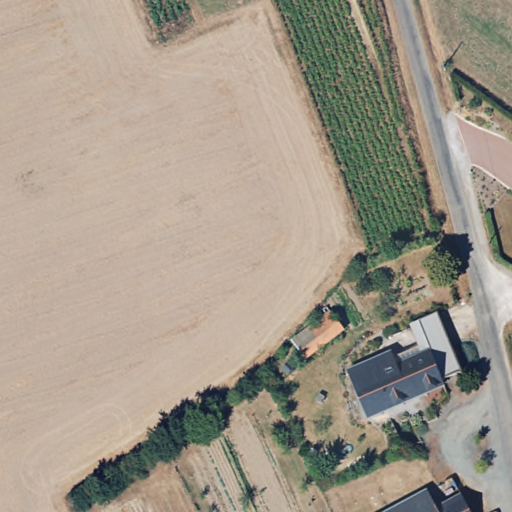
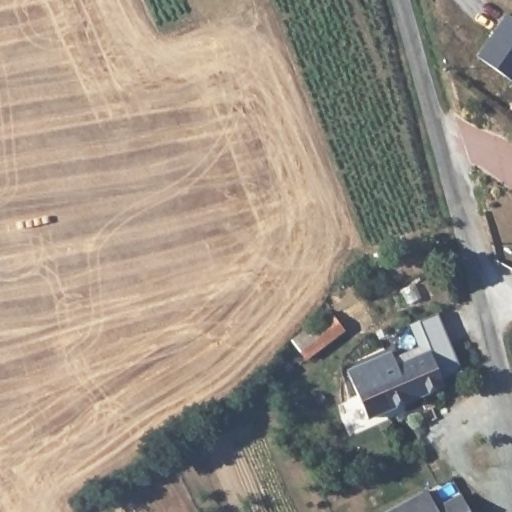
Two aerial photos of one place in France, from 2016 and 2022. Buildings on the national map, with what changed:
new [(504,12),(512,18),(512,83),(475,55),(504,12)]
unchanged [(389,350),(395,364),(428,350),(443,383),(386,408),(365,361),(389,350)]
unchanged [(386,408),(367,416),(347,370),(349,369),(365,361),(386,408)]
unchanged [(402,512),(401,511),(427,497),(435,512),(402,512)]
unchanged [(460,499),(466,512),(435,512),(445,507),(460,499)]
unchanged [(402,512),(400,512),(401,511),(402,512)]

